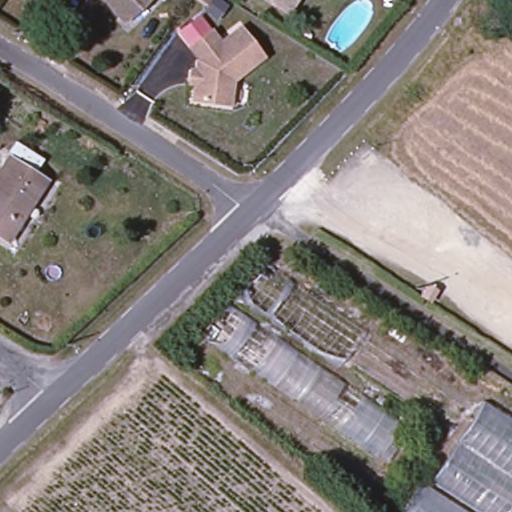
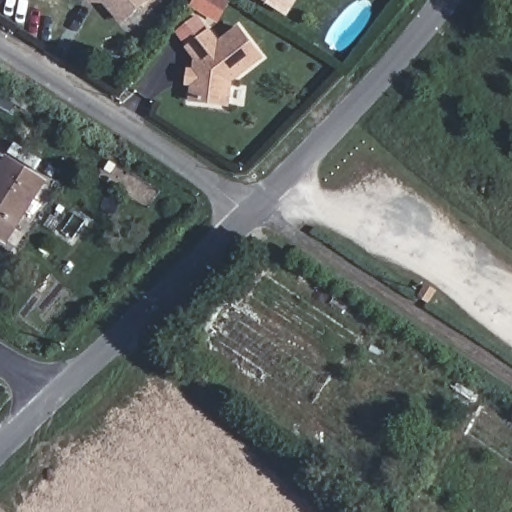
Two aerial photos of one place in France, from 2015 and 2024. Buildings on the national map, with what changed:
unchanged [(129,23),(109,0),(155,0),(129,23)]
unchanged [(288,18),(259,0),(300,0),(288,18)]
unchanged [(197,59),(198,57),(189,45),(210,29),(220,41),(240,26),(263,55),(232,79),(229,102),(192,98),(194,82),(195,72),(197,59)]
unchanged [(2,250),(0,249),(0,173),(3,168),(42,192),(2,250)]
demolished [(225,307),(232,313),(262,266),(365,334),(334,376),(404,426),(382,458),(203,336),(225,307)]
unchanged [(417,297),(423,288),(433,295),(427,303),(417,297)]
demolished [(429,489),(485,400),(512,418),(512,512),(403,512),(422,484),(429,489)]

